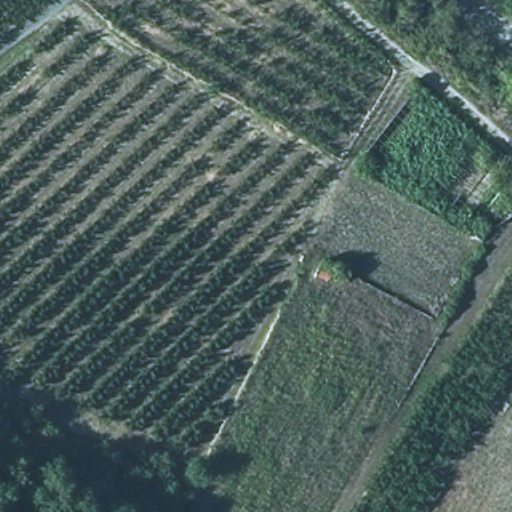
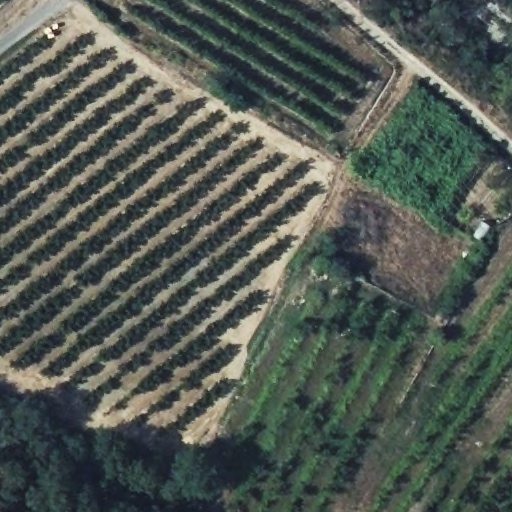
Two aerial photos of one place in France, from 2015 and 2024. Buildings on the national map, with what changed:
[]

